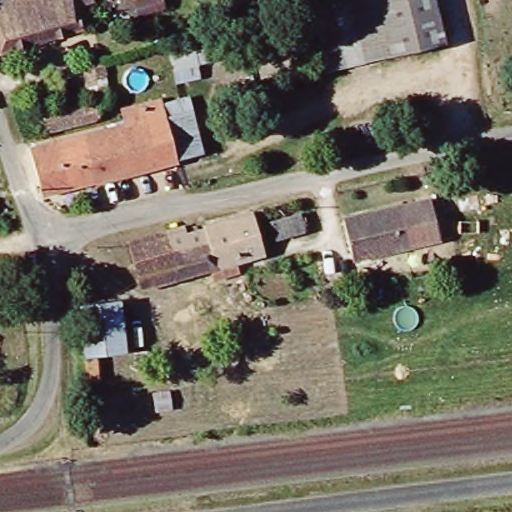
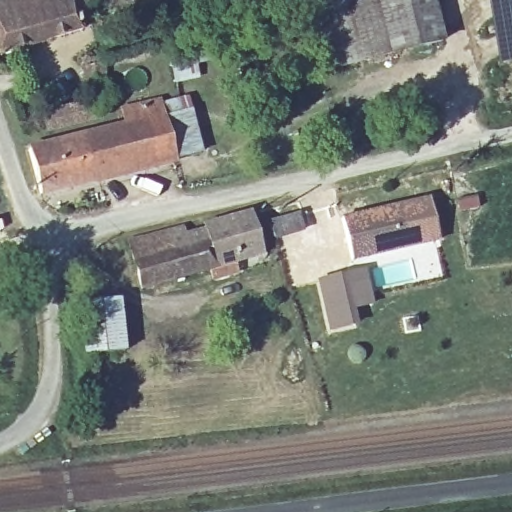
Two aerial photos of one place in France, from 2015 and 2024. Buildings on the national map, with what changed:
unchanged [(0,56),(0,3),(13,0),(80,0),(88,34),(0,56)]
unchanged [(352,7),(351,0),(438,0),(447,37),(327,66),(314,18),(352,7)]
new [(483,0),(512,0),(512,61),(497,65),(483,0)]
unchanged [(179,53),(248,39),(250,53),(200,64),(202,78),(185,81),(179,53)]
unchanged [(107,62),(115,99),(90,104),(81,68),(107,62)]
unchanged [(129,122),(123,95),(161,86),(165,103),(167,111),(129,122)]
unchanged [(193,96),(206,151),(178,156),(167,111),(165,103),(193,96)]
unchanged [(95,121),(50,132),(45,115),(90,104),(95,121)]
unchanged [(54,142),(129,122),(167,111),(178,156),(70,185),(54,142)]
unchanged [(44,192),(29,149),(54,142),(70,185),(44,192)]
unchanged [(410,243),(412,249),(360,259),(353,221),(433,204),(440,237),(410,243)]
unchanged [(296,207),(298,229),(272,233),(270,213),(296,207)]
unchanged [(144,285),(135,235),(253,210),(263,258),(144,285)]
new [(366,267),(375,303),(355,310),(358,325),(328,332),(315,278),(366,267)]
unchanged [(125,350),(90,352),(86,300),(120,298),(125,350)]
unchanged [(92,391),(90,375),(102,373),(104,390),(92,391)]

